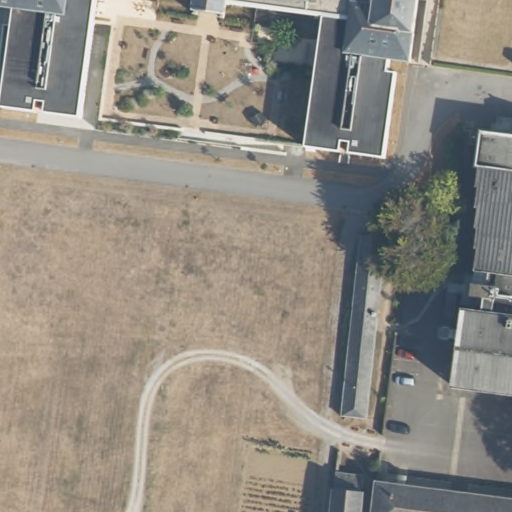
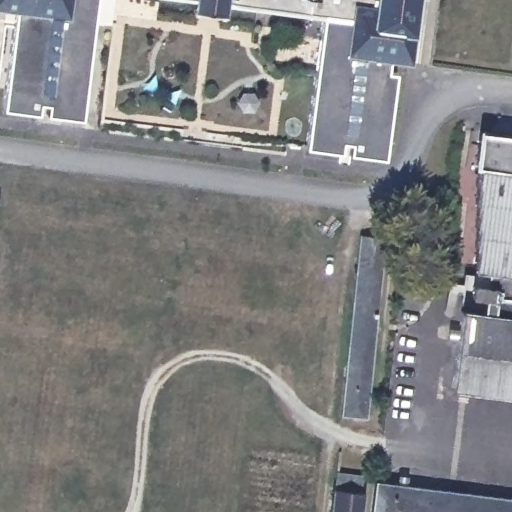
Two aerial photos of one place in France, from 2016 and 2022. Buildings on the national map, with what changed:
unchanged [(67,14),(14,7),(0,5),(0,0),(69,0),(67,14)]
unchanged [(44,111),(45,105),(45,101),(37,100),(36,110),(0,105),(3,87),(11,88),(12,79),(4,78),(14,7),(67,14),(69,0),(96,0),(94,18),(81,110),(80,116),(44,111)]
unchanged [(409,61),(389,58),(346,52),(350,18),(324,14),(226,1),(224,17),(194,13),(196,0),(418,0),(409,61)]
unchanged [(384,157),(305,146),(324,14),(350,18),(346,52),(389,58),(387,70),(395,71),(384,157)]
unchanged [(483,312),(484,296),(470,295),(476,247),(474,247),(476,227),(474,227),(476,205),(475,205),(477,185),(476,184),(478,164),(476,164),(478,144),(469,143),(470,130),(512,135),(512,392),(452,385),(457,339),(459,328),(461,309),(483,312)]
unchanged [(356,232),(383,235),(363,414),(337,411),(356,232)]
unchanged [(363,487),(365,488),(363,512),(333,512),(337,468),(364,472),(363,487)]
unchanged [(512,497),(512,512),(373,512),(378,478),(398,480),(409,482),(512,497)]

